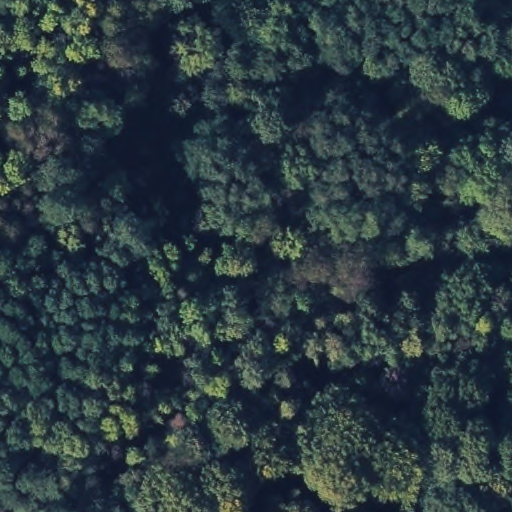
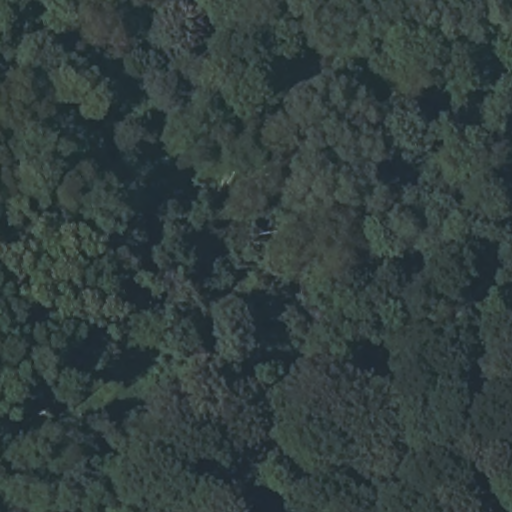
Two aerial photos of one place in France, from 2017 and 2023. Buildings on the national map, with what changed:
unchanged [(394,36),(393,63),(290,60),(290,34),(394,36)]

